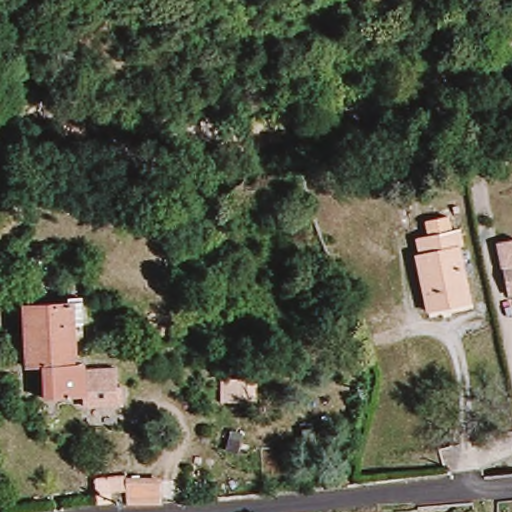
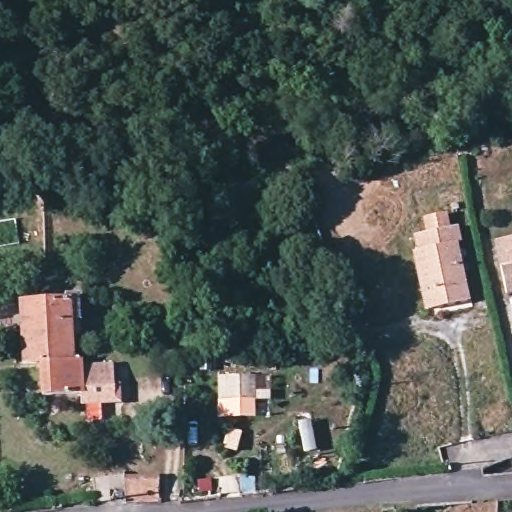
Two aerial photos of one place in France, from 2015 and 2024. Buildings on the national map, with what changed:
unchanged [(415,255),(412,239),(422,237),(418,223),(442,218),(445,232),(452,231),(455,247),(449,248),(460,303),(422,312),(409,256),(415,255)]
unchanged [(512,294),(502,296),(492,263),(512,258),(512,294)]
unchanged [(36,362),(22,363),(20,302),(70,300),(71,361),(36,362)]
unchanged [(302,359),(296,326),(320,323),(325,351),(302,359)]
unchanged [(153,328),(172,326),(174,341),(155,342),(153,328)]
unchanged [(82,362),(82,368),(83,395),(75,395),(37,397),(36,362),(71,361),(82,362)]
unchanged [(82,368),(115,366),(117,398),(75,400),(75,395),(83,395),(82,368)]
new [(255,375),(256,417),(219,419),(218,376),(255,375)]
unchanged [(123,504),(123,489),(122,480),(157,479),(158,503),(123,504)]

